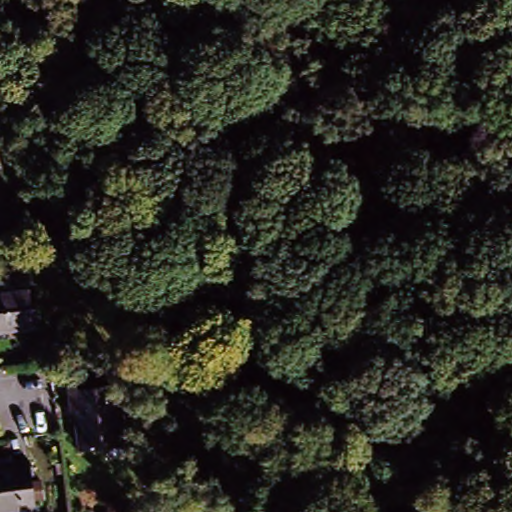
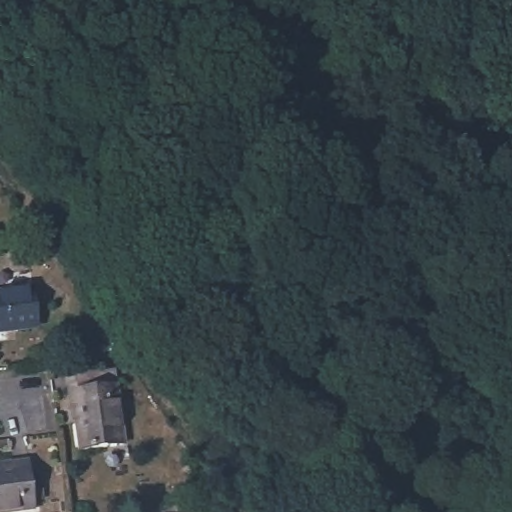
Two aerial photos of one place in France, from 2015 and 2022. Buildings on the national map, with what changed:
unchanged [(32,335),(0,340),(0,301),(27,298),(32,335)]
unchanged [(67,418),(62,384),(108,378),(120,452),(75,458),(72,428),(67,429),(67,418)]
unchanged [(22,512),(0,512),(0,466),(8,465),(23,463),(30,511),(22,512)]

